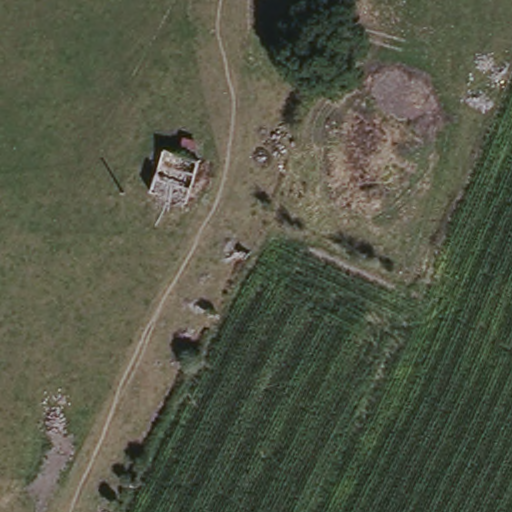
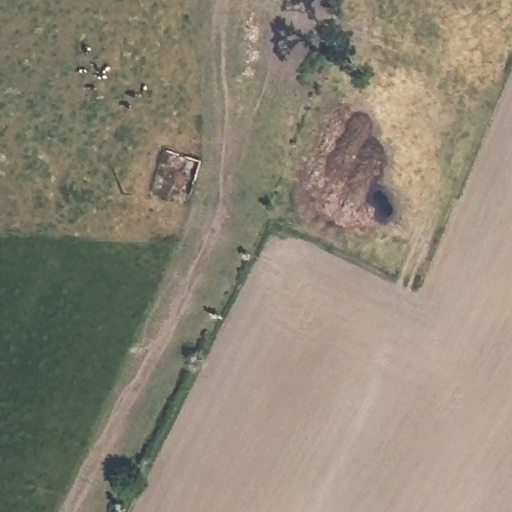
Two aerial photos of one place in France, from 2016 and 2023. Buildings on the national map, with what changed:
unchanged [(163,155),(201,164),(189,209),(151,200),(163,155)]

